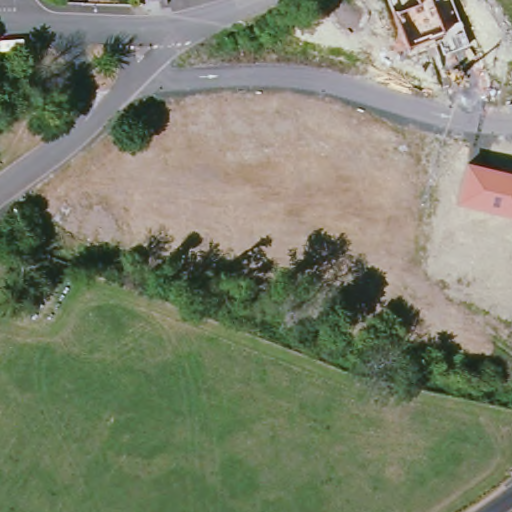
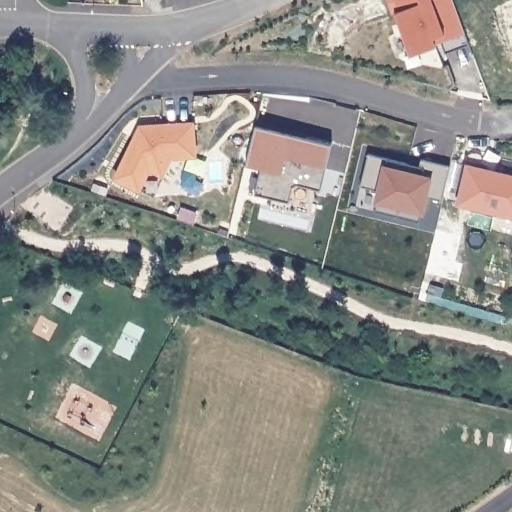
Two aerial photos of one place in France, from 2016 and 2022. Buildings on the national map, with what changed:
unchanged [(445,55),(437,36),(431,38),(433,44),(406,52),(388,0),(452,0),(470,47),(445,55)]
new [(116,178),(135,137),(140,127),(147,126),(193,122),(196,155),(171,157),(162,174),(165,175),(155,197),(152,195),(116,178)]
new [(255,126),(332,144),(321,191),(297,185),(292,187),(289,203),(255,195),(262,161),(247,157),(255,126)]
new [(377,201),(380,191),(360,187),(368,154),(409,164),(420,166),(417,174),(422,158),(451,165),(436,226),(393,216),(375,212),(377,201)]
unchanged [(512,174),(512,216),(455,204),(465,162),(512,174)]

